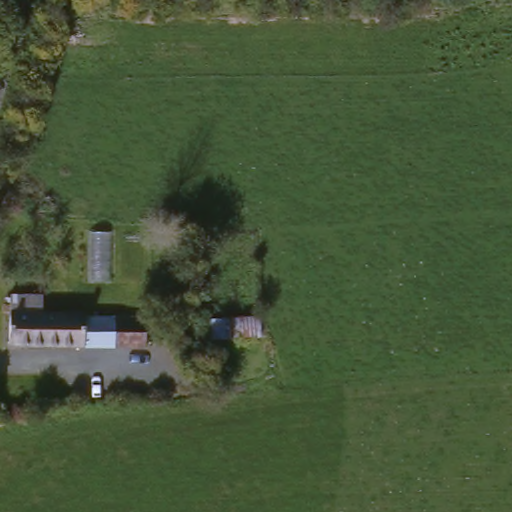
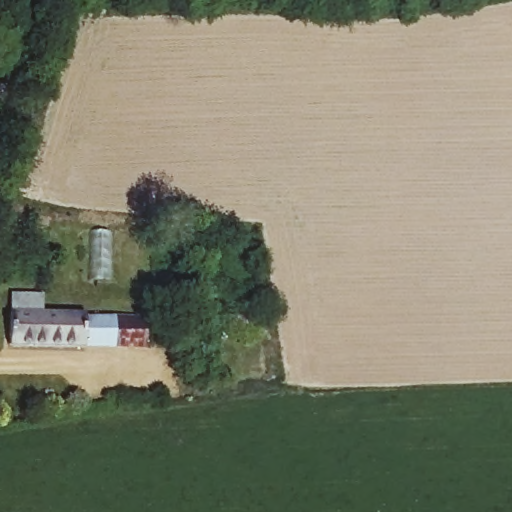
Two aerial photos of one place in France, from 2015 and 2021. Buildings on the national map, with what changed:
unchanged [(146,343),(115,343),(9,340),(9,307),(9,290),(41,290),(41,308),(84,309),(84,312),(116,313),(146,314),(146,343)]

